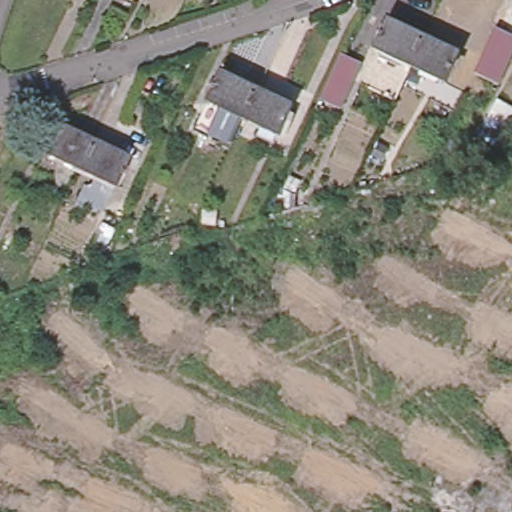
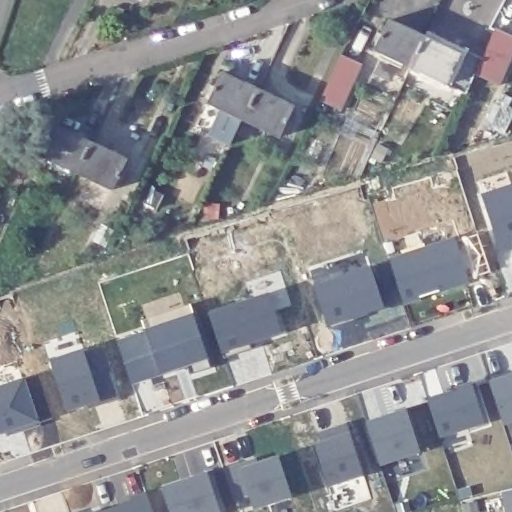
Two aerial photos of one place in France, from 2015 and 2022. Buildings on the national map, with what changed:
unchanged [(447,84),(410,68),(388,58),(375,51),(386,27),(389,21),(397,24),(425,37),(440,44),(460,53),(447,84)]
unchanged [(512,35),(512,62),(501,86),(477,75),(498,29),(512,35)]
unchanged [(343,56),(362,65),(365,67),(342,112),(322,102),(335,74),(343,56)]
unchanged [(294,108),(280,136),(245,120),(225,111),(209,103),(222,75),(258,91),(268,96),(294,108)]
unchanged [(113,191),(78,174),(59,166),(42,157),(55,130),(56,127),(60,129),(92,144),(105,150),(127,161),(113,191)]
new [(512,249),(502,251),(483,196),(512,187),(512,249)]
new [(456,238),(470,281),(403,303),(390,260),(456,238)]
new [(371,269),(383,308),(327,326),(314,287),(371,269)]
new [(210,314),(270,294),(282,332),(250,342),(252,349),(225,358),(210,314)]
new [(119,342),(147,332),(147,330),(195,315),(212,368),(190,375),(187,365),(132,383),(119,342)]
new [(85,350),(87,355),(105,349),(121,396),(101,403),(100,399),(67,409),(52,361),(85,350)]
new [(508,379),(512,378),(512,422),(504,424),(490,382),(507,376),(508,379)]
new [(24,380),(38,422),(0,434),(0,387),(24,380)]
new [(473,384),(485,422),(440,436),(428,399),(473,384)]
new [(100,399),(101,403),(89,407),(87,403),(100,399)]
new [(383,417),(384,419),(396,415),(395,413),(407,409),(421,452),(381,465),(367,422),(383,417)]
new [(315,444),(335,438),(332,429),(348,423),(365,475),(329,487),(315,444)]
new [(318,433),(332,429),(335,438),(321,442),(318,433)]
new [(240,468),(279,455),(292,494),(255,507),(240,468)]
new [(184,486),(194,483),(192,478),(208,472),(221,512),(171,512),(163,487),(182,481),(184,486)]
new [(118,504),(133,499),(132,497),(147,492),(154,512),(103,512),(119,506),(118,504)]
new [(103,512),(95,512),(102,509),(103,512)]

